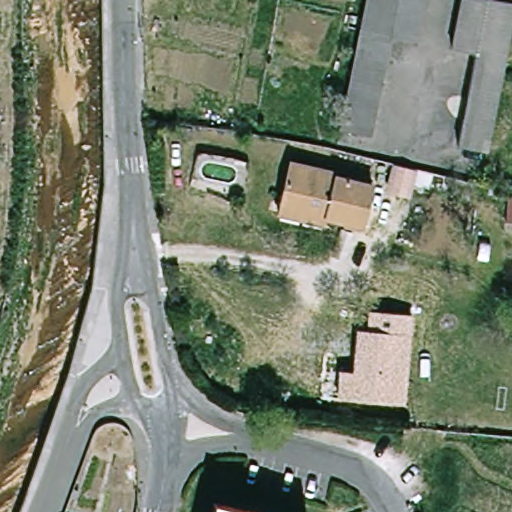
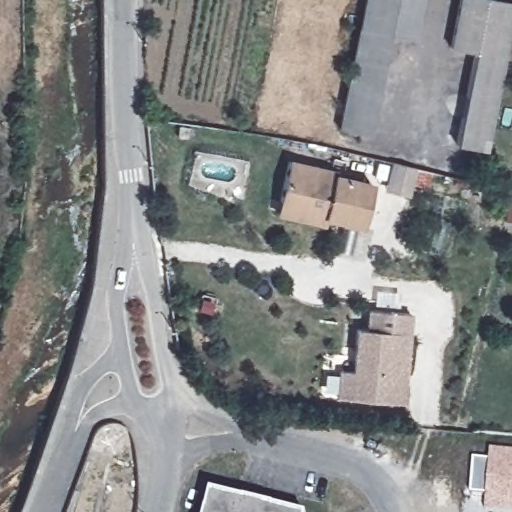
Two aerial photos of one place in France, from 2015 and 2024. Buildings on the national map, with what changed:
unchanged [(391,32),(370,130),(340,125),(367,0),(424,0),(415,37),(391,32)]
unchanged [(458,43),(466,0),(512,0),(512,60),(495,150),(464,145),(482,47),(458,43)]
unchanged [(280,212),(283,201),(292,159),(340,169),(340,173),(375,180),(366,224),(328,216),(327,222),(280,212)]
unchanged [(403,164),(393,192),(378,186),(387,159),(403,164)]
unchanged [(510,193),(512,193),(512,221),(507,221),(510,193)]
unchanged [(411,315),(405,405),(335,398),(338,370),(352,371),(355,329),(365,330),(366,310),(411,315)]
new [(490,461),(490,450),(512,451),(512,512),(496,512),(485,511),(486,496),(470,494),(472,458),(490,461)]
unchanged [(218,503),(226,505),(252,512),(216,512),(218,503)]

